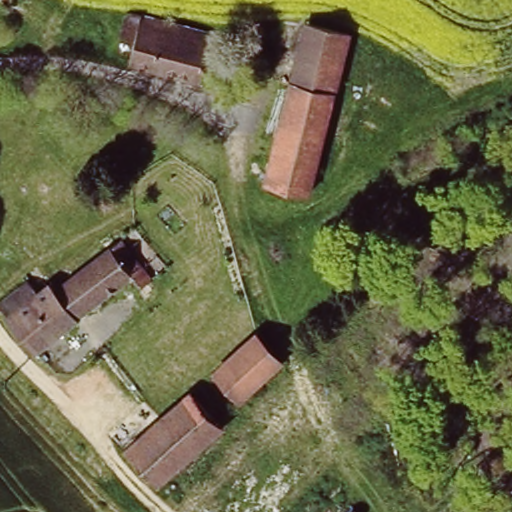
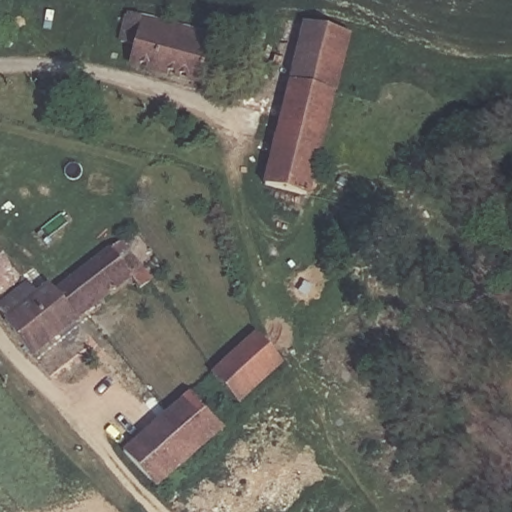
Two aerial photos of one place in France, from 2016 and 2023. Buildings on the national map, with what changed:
unchanged [(207,70),(118,52),(122,37),(109,33),(113,10),(217,31),(207,70)]
unchanged [(285,98),(311,10),(359,20),(333,112),(285,98)]
unchanged [(310,191),(261,181),(285,98),(333,112),(310,191)]
unchanged [(58,277),(66,284),(128,233),(158,264),(146,274),(140,269),(37,358),(0,322),(58,277)]
unchanged [(246,401),(213,373),(255,327),(288,357),(246,401)]
unchanged [(160,482),(130,454),(196,381),(217,400),(205,413),(217,425),(160,482)]

